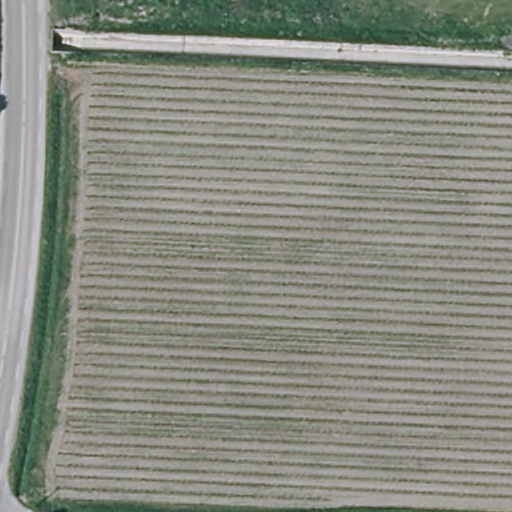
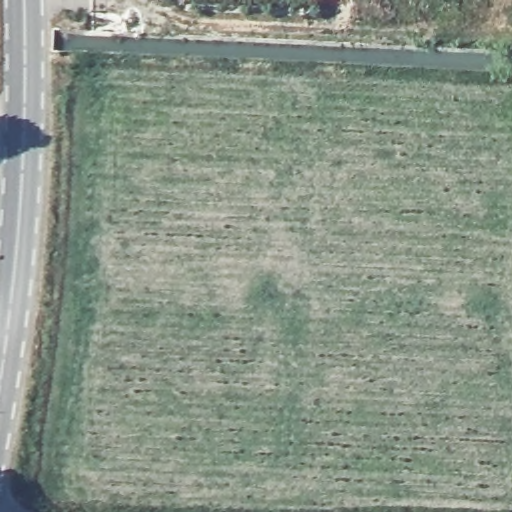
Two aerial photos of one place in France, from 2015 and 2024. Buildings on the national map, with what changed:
[]

